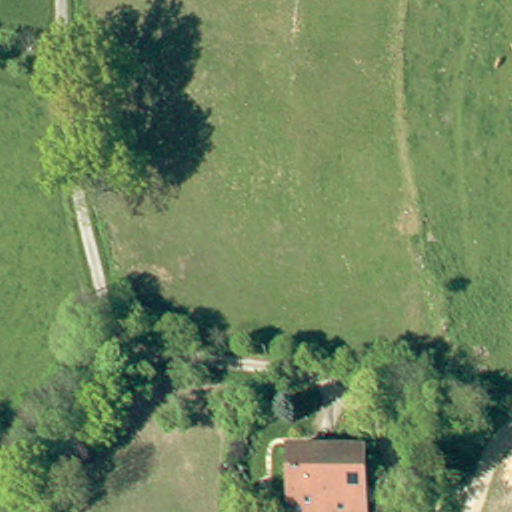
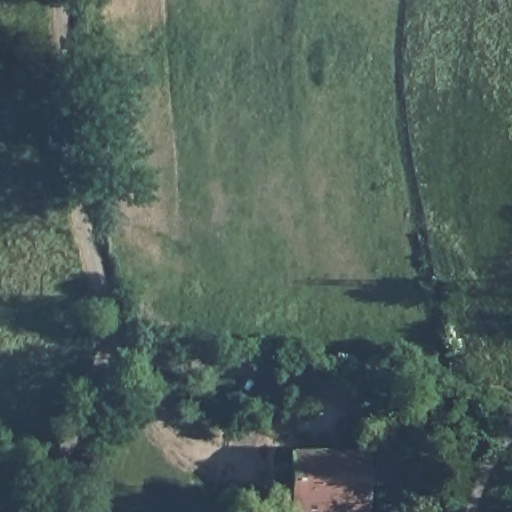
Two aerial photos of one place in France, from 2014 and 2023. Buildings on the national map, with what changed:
unchanged [(296,512),(297,452),(365,454),(365,512),(296,512)]

